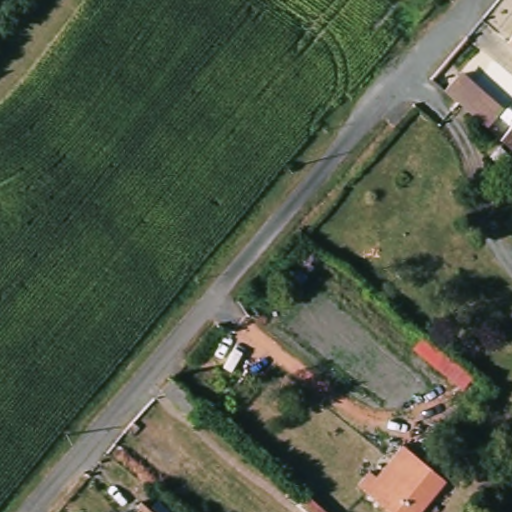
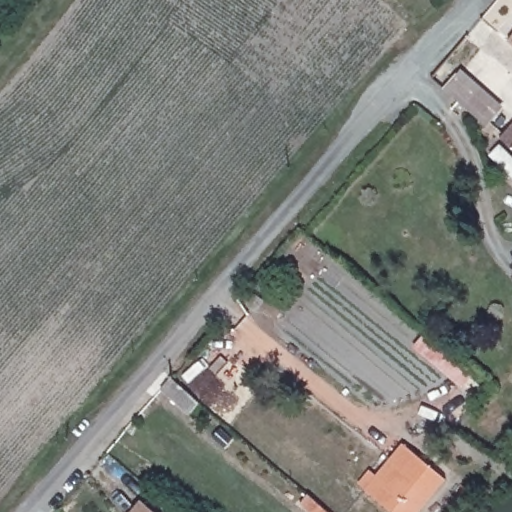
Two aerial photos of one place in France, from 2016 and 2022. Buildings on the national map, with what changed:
unchanged [(506,43),(512,36),(512,48),(506,43)]
unchanged [(503,110),(486,130),(444,92),(461,72),(503,110)]
unchanged [(499,142),(512,126),(512,153),(499,142)]
unchanged [(199,407),(191,417),(160,392),(169,382),(199,407)]
unchanged [(423,500),(412,512),(388,512),(368,493),(403,446),(447,482),(430,504),(423,500)]
unchanged [(310,495),(330,512),(309,512),(301,505),(310,495)]
unchanged [(145,503),(154,512),(137,512),(143,505),(145,503)]

